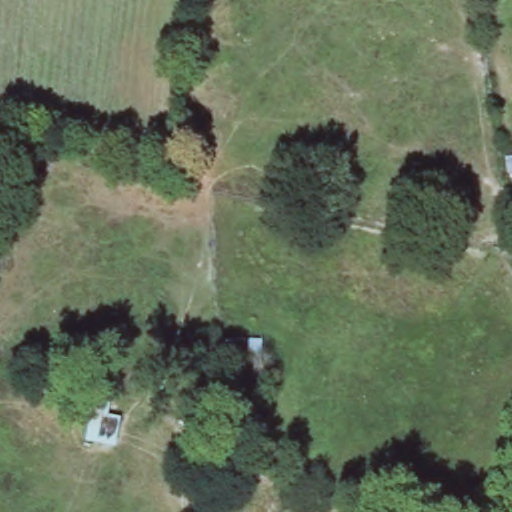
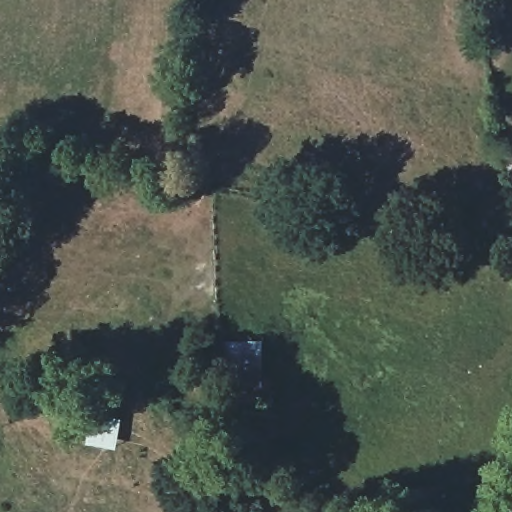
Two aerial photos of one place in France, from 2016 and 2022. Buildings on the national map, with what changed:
unchanged [(226,339),(265,338),(267,411),(228,412),(226,339)]

